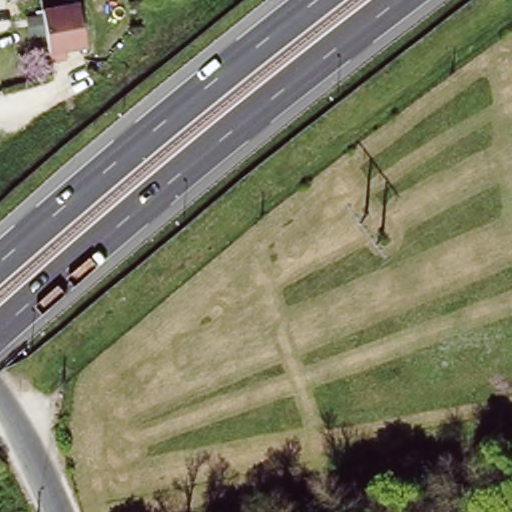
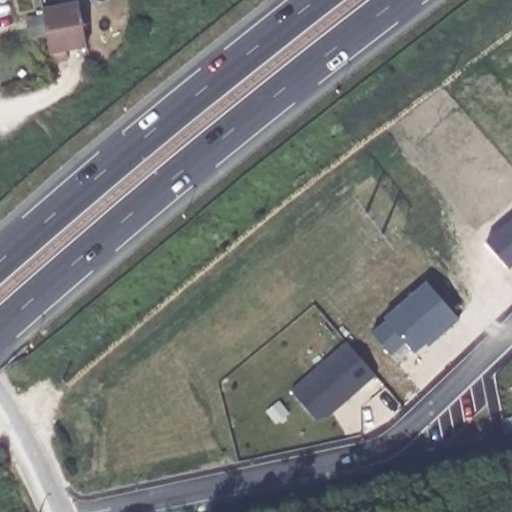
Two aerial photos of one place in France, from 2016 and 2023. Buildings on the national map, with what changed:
unchanged [(65,51),(67,60),(51,63),(42,10),(78,4),(86,47),(65,51)]
new [(414,354),(412,351),(399,364),(373,332),(385,321),(384,318),(428,280),(460,318),(414,354)]
new [(331,418),(318,421),(292,392),(349,341),(379,373),(331,418)]

